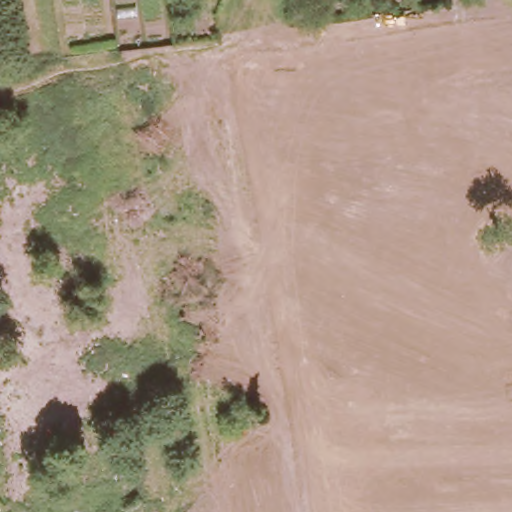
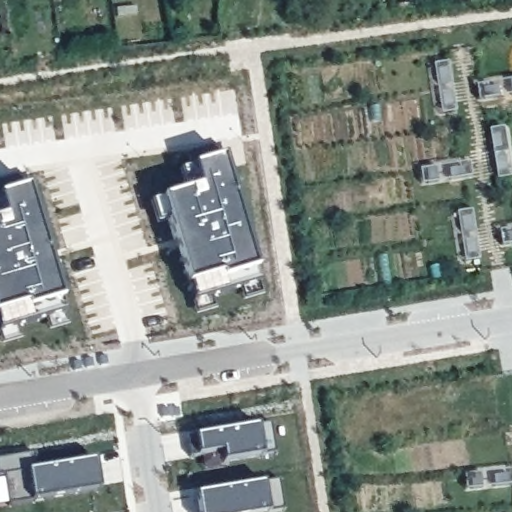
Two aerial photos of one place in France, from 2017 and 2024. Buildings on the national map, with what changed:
new [(187,285),(163,199),(198,188),(192,167),(223,159),(256,271),(259,285),(192,304),(187,285)]
new [(2,218),(0,211),(0,196),(29,187),(61,299),(0,317),(0,219),(2,218)]
demolished [(218,222),(201,224),(196,200),(213,198),(218,222)]
new [(65,313),(0,332),(0,317),(61,299),(65,313)]
demolished [(203,417),(227,415),(233,472),(209,473),(203,417)]
new [(186,438),(195,436),(258,426),(268,425),(274,453),(261,456),(223,462),(221,453),(197,457),(189,458),(186,438)]
new [(4,473),(0,473),(0,459),(34,453),(37,470),(95,461),(99,490),(31,500),(9,504),(4,473)]
new [(263,484),(278,482),(283,511),(278,512),(198,512),(196,494),(263,484)]
demolished [(158,512),(141,512),(141,499),(158,498),(158,512)]

